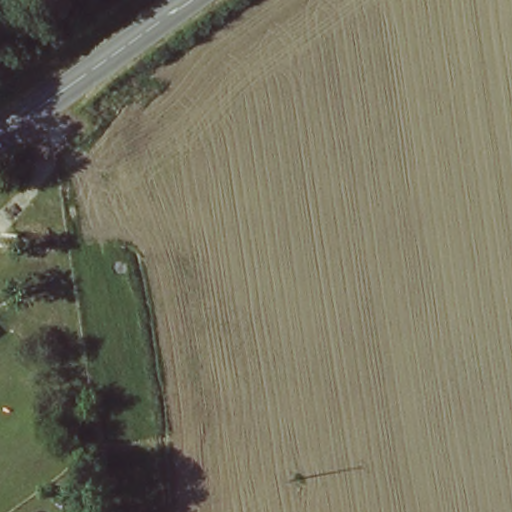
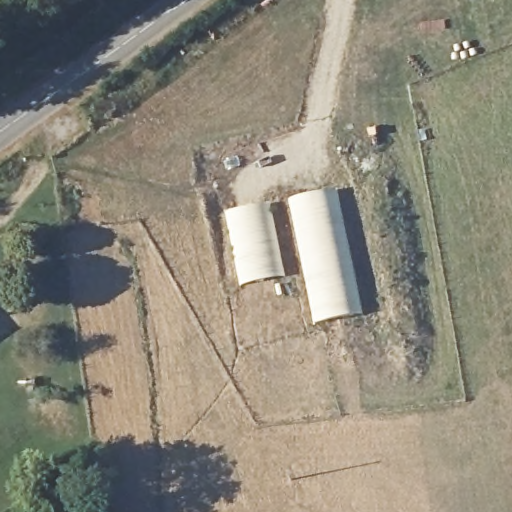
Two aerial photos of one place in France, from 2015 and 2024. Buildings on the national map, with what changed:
new [(317,324),(293,199),(336,189),(362,315),(317,324)]
new [(244,285),(228,212),(270,204),(286,277),(244,285)]

